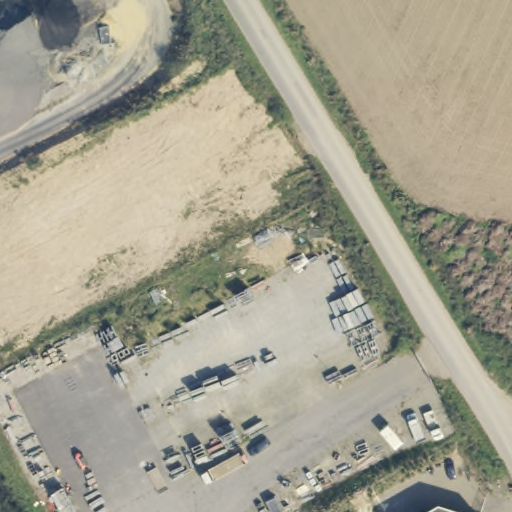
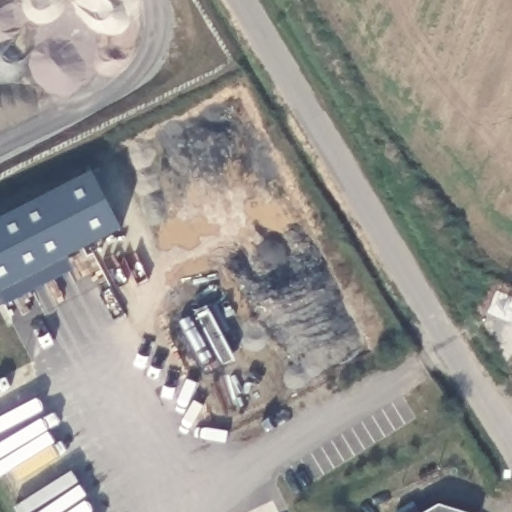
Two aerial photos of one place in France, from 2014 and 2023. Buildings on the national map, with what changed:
new [(68,258),(73,271),(1,307),(0,303),(0,216),(90,172),(120,231),(68,258)]
unchanged [(455,512),(438,512),(444,508),(455,512)]

